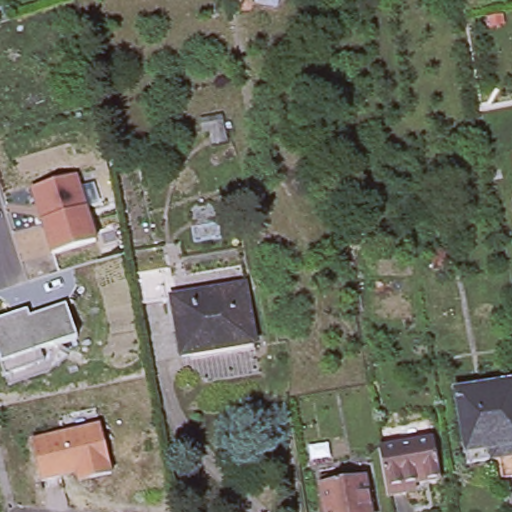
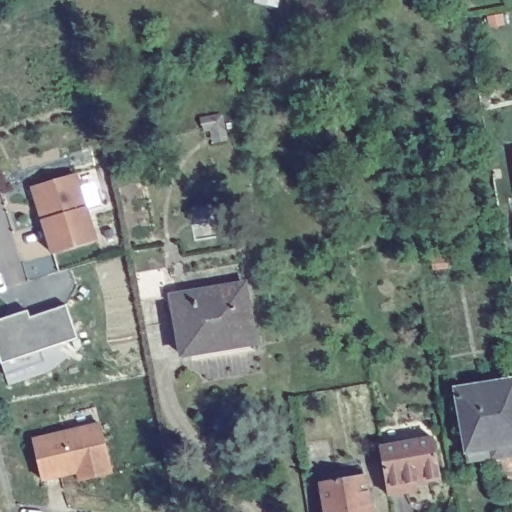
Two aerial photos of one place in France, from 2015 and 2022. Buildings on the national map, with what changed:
unchanged [(72,176),(92,242),(48,256),(39,222),(34,206),(30,194),(34,187),(72,176)]
unchanged [(178,356),(168,296),(240,285),(249,338),(230,341),(230,347),(178,356)]
unchanged [(2,368),(0,362),(0,310),(23,302),(26,309),(62,297),(74,330),(60,335),(45,364),(5,377),(2,368)]
unchanged [(497,471),(493,452),(460,458),(447,385),(505,375),(512,411),(512,469),(497,471)]
unchanged [(38,481),(29,440),(61,433),(96,425),(108,474),(76,481),(74,472),(38,481)]
unchanged [(405,492),(385,496),(376,448),(431,440),(438,478),(413,482),(415,490),(405,492)]
unchanged [(360,477),(366,512),(321,512),(317,485),(360,477)]
unchanged [(488,485),(491,498),(466,502),(463,488),(488,485)]

